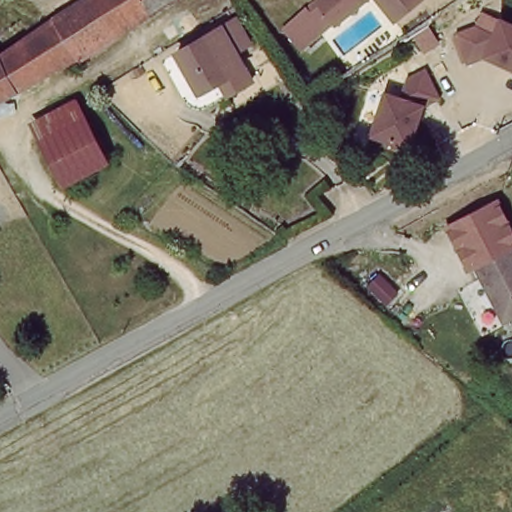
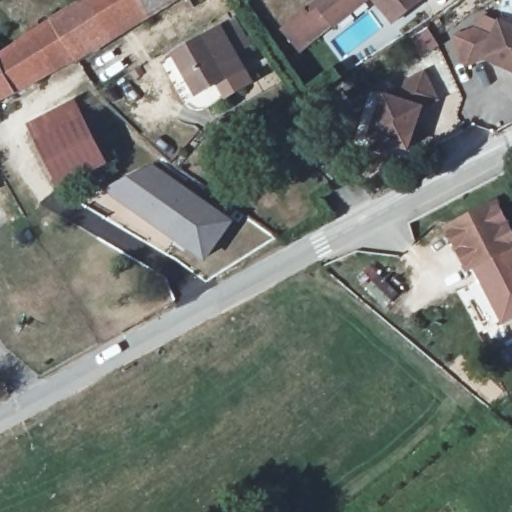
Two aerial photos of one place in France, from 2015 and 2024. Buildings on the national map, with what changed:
unchanged [(45,22),(77,0),(167,0),(70,63),(45,22)]
unchanged [(333,27),(330,25),(321,31),(297,50),(288,39),(305,11),(319,0),(368,0),(333,27)]
unchanged [(422,2),(392,25),(372,0),(420,0),(422,2)]
unchanged [(226,94),(219,81),(200,93),(179,51),(223,25),(240,15),(254,41),(237,51),(249,72),(254,82),(239,91),(228,97),(226,94)]
unchanged [(70,63),(0,96),(0,52),(45,22),(70,63)]
unchanged [(478,32),(496,41),(503,25),(512,29),(512,73),(486,61),(470,67),(459,39),(478,32)]
unchanged [(401,101),(408,83),(426,75),(439,101),(423,109),(409,150),(371,137),(386,96),(401,101)]
unchanged [(83,109),(107,154),(61,177),(37,132),(83,109)]
new [(151,165),(235,221),(208,260),(132,206),(122,183),(151,165)]
unchanged [(498,212),(512,239),(512,302),(502,308),(462,232),(498,212)]

